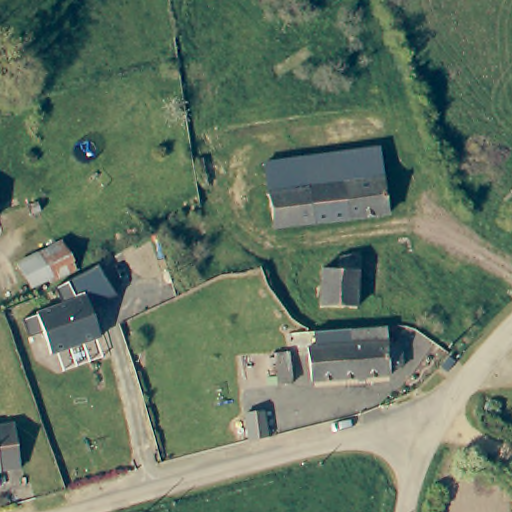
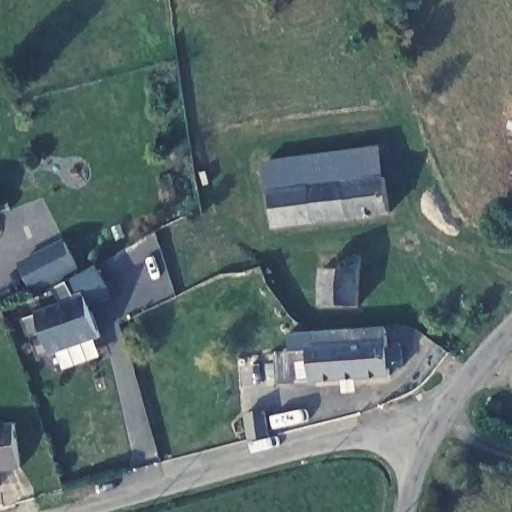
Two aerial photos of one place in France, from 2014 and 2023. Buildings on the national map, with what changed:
unchanged [(279,1),(264,3),(263,0),(279,0),(279,1)]
unchanged [(308,156),(349,152),(384,149),(386,175),(390,213),(314,221),(273,225),(269,187),(310,183),(308,156)]
unchanged [(267,161),(308,156),(310,183),(269,187),(267,161)]
unchanged [(52,282),(51,280),(33,287),(18,262),(51,248),(65,242),(79,269),(52,282)]
unchanged [(341,256),(362,258),(359,308),(321,306),(323,269),(340,270),(341,256)]
unchanged [(92,271),(103,264),(124,298),(96,306),(106,338),(64,350),(56,353),(49,330),(34,335),(28,316),(46,311),(70,304),(61,287),(92,271)]
unchanged [(304,354),(351,346),(350,333),(388,327),(390,345),(402,343),(406,364),(394,365),(395,373),(308,388),(307,384),(304,354)]
unchanged [(279,383),(277,354),(293,351),(296,381),(279,383)]
unchanged [(498,401),(501,403),(503,406),(504,409),(502,412),(499,415),(494,415),(491,413),(489,410),(488,407),(490,403),(493,401),(495,401),(498,401)]
unchanged [(266,434),(249,437),(244,414),(263,411),(266,434)]
unchanged [(21,467),(0,468),(0,423),(18,421),(21,467)]

